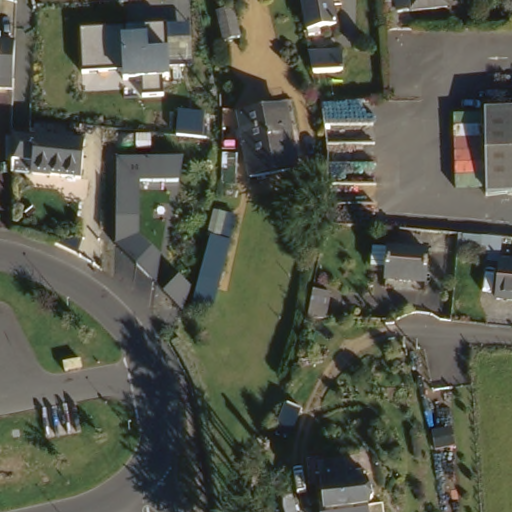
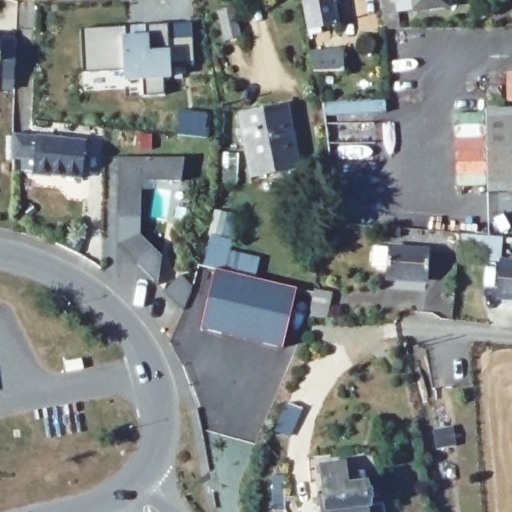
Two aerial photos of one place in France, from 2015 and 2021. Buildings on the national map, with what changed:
unchanged [(341,20),(314,26),(309,0),(338,0),(341,20)]
unchanged [(442,4),(428,6),(430,21),(411,22),(409,0),(477,0),(442,4)]
unchanged [(238,2),(243,32),(227,36),(221,5),(238,2)]
unchanged [(171,79),(164,79),(164,95),(143,96),(142,79),(123,80),(123,70),(84,71),(82,29),(191,25),(192,39),(167,40),(169,49),(171,79)]
unchanged [(15,93),(0,92),(0,39),(20,40),(20,42),(30,42),(27,87),(16,86),(15,93)]
unchanged [(346,46),(348,68),(318,70),(312,47),(346,46)]
unchanged [(264,103),(267,115),(296,111),(298,125),(305,164),(256,174),(244,106),(264,103)]
unchanged [(487,187),(487,104),(512,103),(512,187),(487,187)]
unchanged [(185,105),(210,107),(208,132),(183,130),(185,105)]
unchanged [(19,169),(19,137),(96,140),(95,171),(19,169)]
unchanged [(140,183),(139,234),(161,254),(157,285),(114,245),(117,159),(182,158),(179,184),(140,183)]
demolished [(222,209),(246,212),(242,252),(224,315),(197,305),(217,237),(222,209)]
new [(238,215),(229,250),(258,257),(253,277),(202,264),(210,236),(207,235),(214,211),(238,215)]
unchanged [(437,278),(398,275),(398,269),(383,267),(386,242),(401,244),(440,247),(437,278)]
unchanged [(512,257),(512,296),(505,296),(510,257),(512,257)]
new [(199,330),(216,270),(296,288),(282,349),(199,330)]
unchanged [(89,371),(67,374),(65,361),(87,357),(89,371)]
unchanged [(295,398),(292,430),(279,429),(281,397),(295,398)]
unchanged [(317,479),(315,467),(347,464),(348,476),(365,474),(366,490),(372,489),(373,501),(370,501),(370,510),(370,512),(325,512),(323,477),(317,479)]
unchanged [(307,512),(295,512),(291,487),(301,486),(307,512)]

